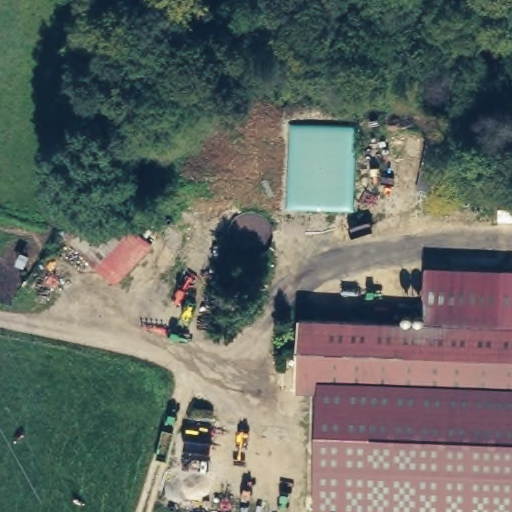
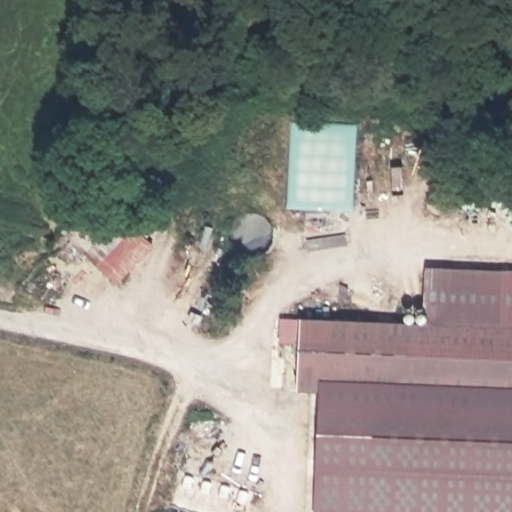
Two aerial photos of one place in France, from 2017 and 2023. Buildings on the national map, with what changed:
unchanged [(404,322),(404,310),(424,311),(425,267),(512,271),(512,404),(296,395),(301,317),(404,322)]
unchanged [(512,404),(512,512),(313,512),(320,396),(512,404)]

